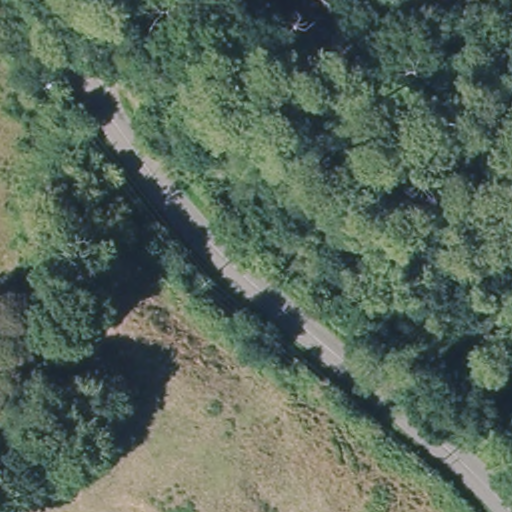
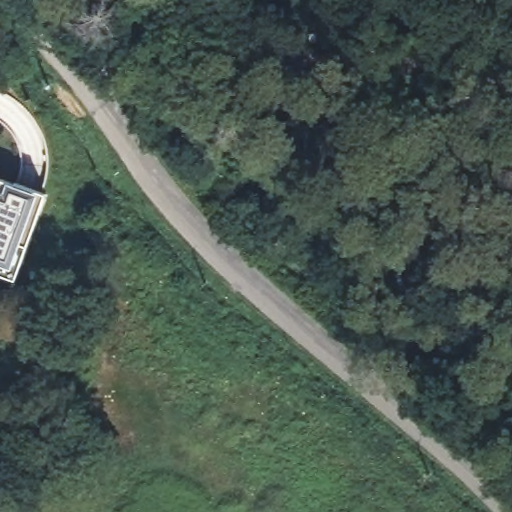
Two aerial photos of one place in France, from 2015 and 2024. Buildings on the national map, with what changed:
new [(0,272),(0,178),(19,184),(19,183),(50,194),(25,265),(20,279),(0,272)]

